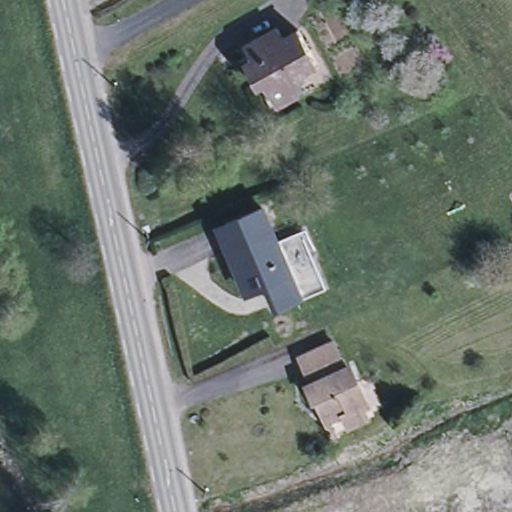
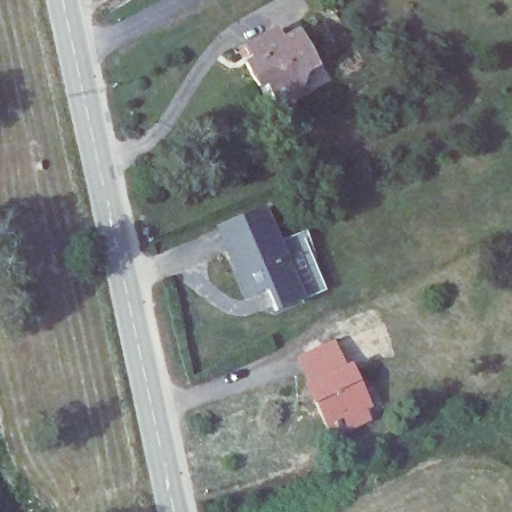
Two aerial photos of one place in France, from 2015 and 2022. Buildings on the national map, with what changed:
unchanged [(248,56),(241,44),(263,31),(268,39),(283,32),(306,72),(265,97),(255,82),(250,85),(237,62),(248,56)]
unchanged [(262,209),(290,275),(247,293),(237,270),(243,267),(225,224),(262,209)]
unchanged [(328,342),(341,369),(343,368),(360,403),(356,405),(362,417),(343,427),(338,414),(325,420),(315,399),(310,402),(307,385),(295,357),(328,342)]
unchanged [(330,428),(332,435),(326,438),(322,431),(330,428)]

